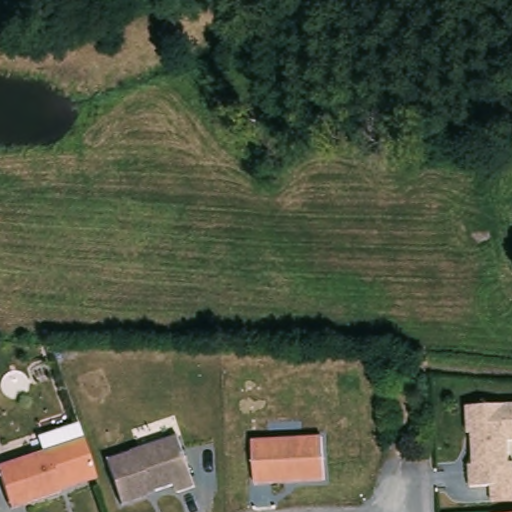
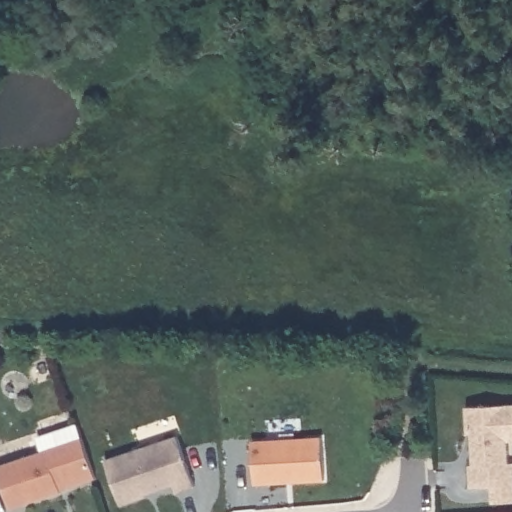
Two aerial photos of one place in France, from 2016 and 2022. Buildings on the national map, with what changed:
unchanged [(512,401),(512,438),(509,438),(510,458),(512,458),(512,498),(492,499),(491,485),(470,486),(469,462),(473,462),(471,431),(468,431),(466,402),(512,401)]
unchanged [(96,477),(10,507),(0,475),(0,461),(81,434),(96,477)]
unchanged [(177,438),(194,489),(175,495),(173,487),(147,496),(148,497),(122,506),(104,462),(177,438)]
unchanged [(255,445),(325,441),(328,484),(258,488),(255,445)]

